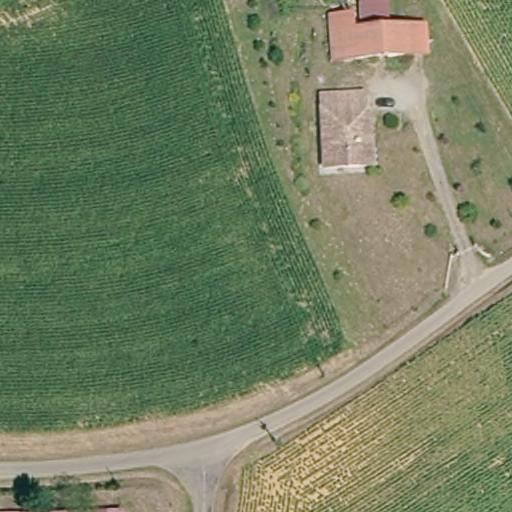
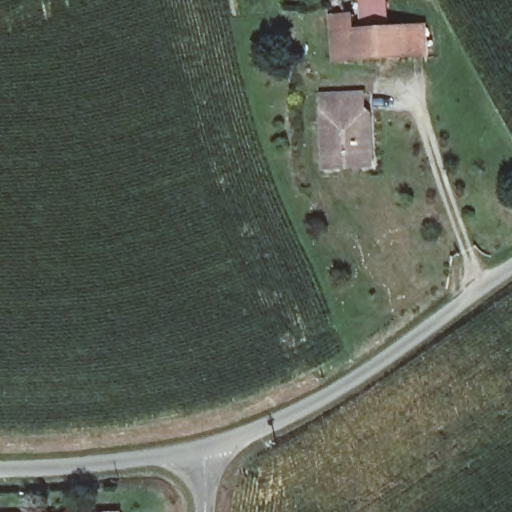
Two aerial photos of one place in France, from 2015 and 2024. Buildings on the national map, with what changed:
unchanged [(357,33),(357,0),(384,0),(384,33),(357,33)]
unchanged [(403,33),(424,33),(424,58),(325,58),(325,40),(325,34),(325,16),(351,16),(351,33),(357,33),(384,33),(403,33)]
unchanged [(320,143),(319,93),(363,92),(362,108),(371,113),(372,124),(362,125),(363,139),(372,139),(372,164),(355,164),(321,165),(320,143)]

